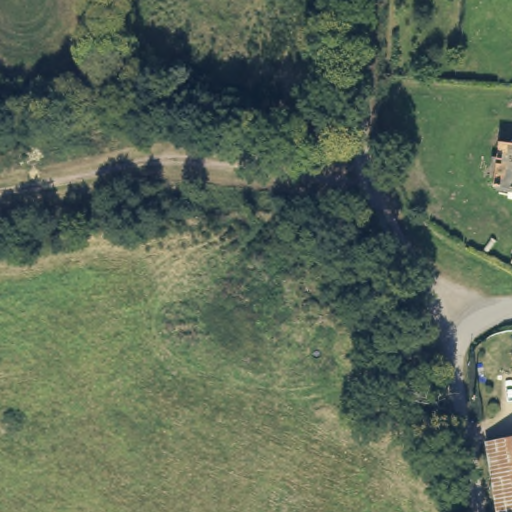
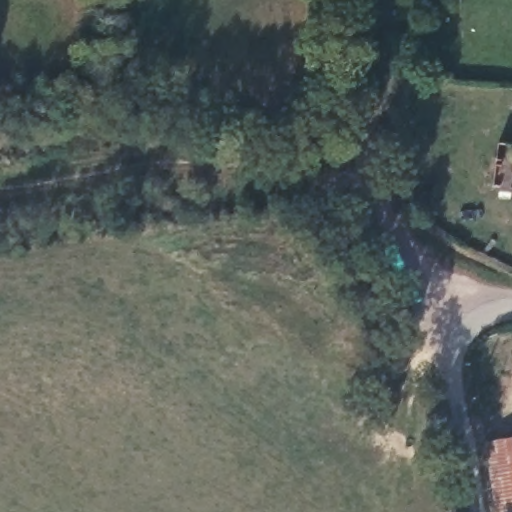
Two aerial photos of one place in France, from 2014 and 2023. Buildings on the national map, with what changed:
unchanged [(512,144),(512,187),(492,186),(498,143),(512,144)]
unchanged [(512,438),(512,510),(501,511),(494,440),(512,438)]

